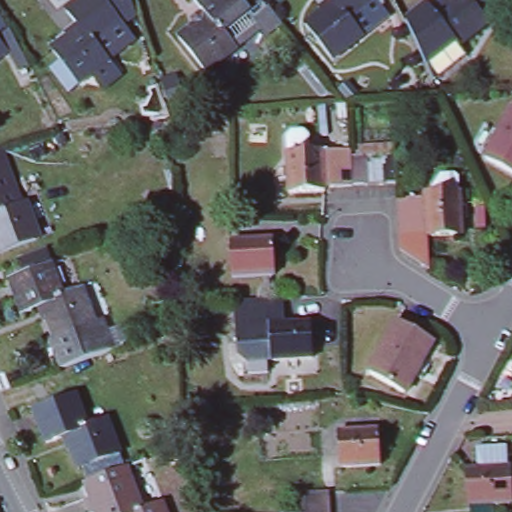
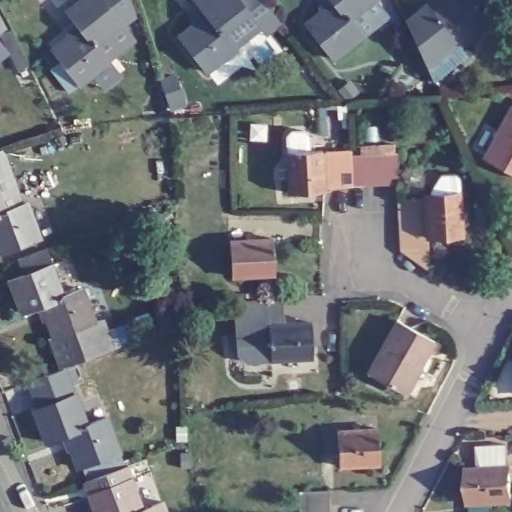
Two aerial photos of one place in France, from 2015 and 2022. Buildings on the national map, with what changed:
unchanged [(102,65),(75,88),(47,54),(75,33),(62,17),(84,0),(126,0),(131,16),(116,28),(128,44),(102,64),(102,65)]
unchanged [(207,74),(180,41),(205,20),(192,4),(197,0),(261,0),(282,25),(267,38),(249,15),(222,36),(235,52),(207,74)]
unchanged [(326,57),(300,25),(327,2),(325,0),(366,0),(344,19),(355,33),(326,57)]
unchanged [(480,0),(475,4),(489,20),(462,43),(457,38),(432,9),(443,0),(480,0)]
unchanged [(432,9),(457,38),(462,43),(470,53),(439,79),(435,80),(407,19),(427,2),(432,9)]
unchanged [(486,154),(500,128),(507,113),(512,111),(512,175),(487,161),(487,156),(486,154)]
unchanged [(312,158),(315,196),(281,199),(277,160),(312,158)]
unchanged [(366,162),(369,161),(383,160),(385,189),(371,190),(368,190),(354,192),(339,193),(336,165),(352,163),(366,162)]
unchanged [(435,193),(467,190),(470,229),(439,232),(438,228),(410,230),(407,198),(435,196),(435,193)]
unchanged [(30,234),(0,246),(0,211),(20,204),(30,234)]
unchanged [(275,239),(277,273),(237,276),(235,243),(275,239)]
unchanged [(20,309),(7,277),(47,263),(59,294),(79,287),(90,319),(49,334),(37,303),(20,309)]
unchanged [(282,323),(270,324),(273,357),(249,359),(240,354),(238,331),(239,330),(236,303),(280,299),(282,323)]
unchanged [(282,323),(310,320),(314,354),(273,358),(273,357),(270,324),(282,323)]
unchanged [(434,344),(429,354),(405,396),(369,374),(377,359),(397,324),(434,344)]
unchanged [(35,443),(22,409),(60,396),(73,428),(93,421),(105,454),(67,468),(55,436),(35,443)]
unchanged [(377,429),(380,464),(341,468),(339,433),(377,429)]
unchanged [(504,464),(505,499),(464,502),(462,466),(504,464)]
unchanged [(102,477),(127,467),(145,512),(163,504),(166,512),(100,512),(89,482),(102,477)]
unchanged [(299,504),(297,492),(327,490),(329,504),(329,512),(299,512),(299,504)]

